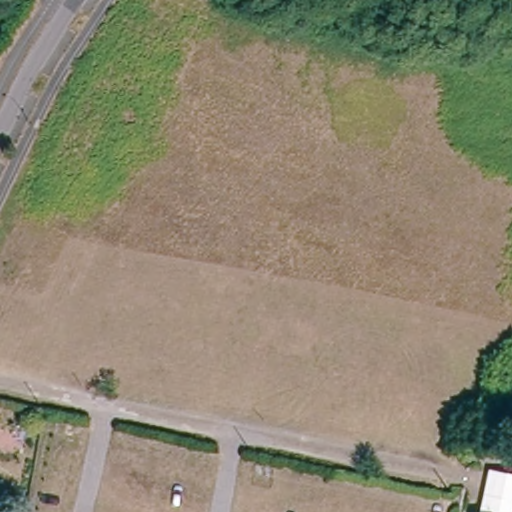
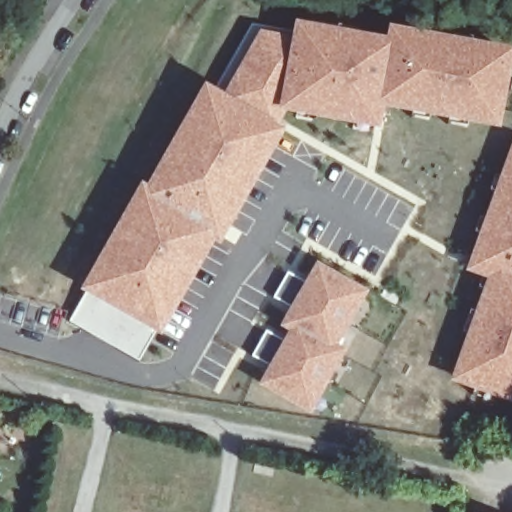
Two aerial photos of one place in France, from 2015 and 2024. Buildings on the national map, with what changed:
new [(80,290),(141,185),(146,187),(205,85),(215,90),(252,25),(291,32),(292,22),(385,40),(387,26),(512,48),(512,62),(499,130),(382,108),(377,130),(283,112),(274,124),(285,131),(219,248),(213,245),(162,338),(154,334),(140,361),(71,322),(87,294),(80,290)]
new [(472,390),(452,383),(471,337),(462,333),(470,311),(479,314),(488,289),(479,285),(485,270),(473,265),(463,261),(467,251),(477,255),(485,235),(476,231),(481,217),(490,220),(499,195),(491,191),(496,176),(505,180),(512,161),(512,406),(492,398),(488,407),(467,400),(472,390)]
new [(286,345),(293,330),(285,326),(293,311),(284,306),(297,281),(306,286),(313,271),(357,295),(328,349),(337,353),(307,410),(264,386),(272,370),(263,366),(277,340),(286,345)]

